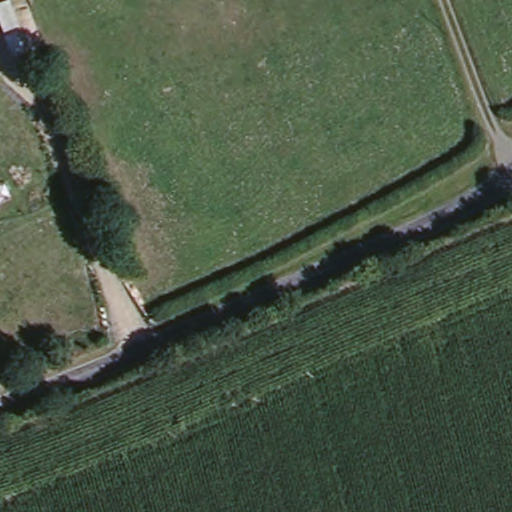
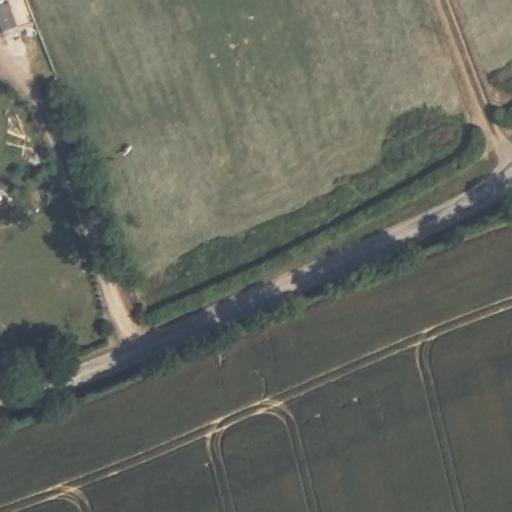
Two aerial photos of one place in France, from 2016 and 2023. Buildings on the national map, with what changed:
unchanged [(0,9),(0,0),(10,0),(11,3),(0,9)]

